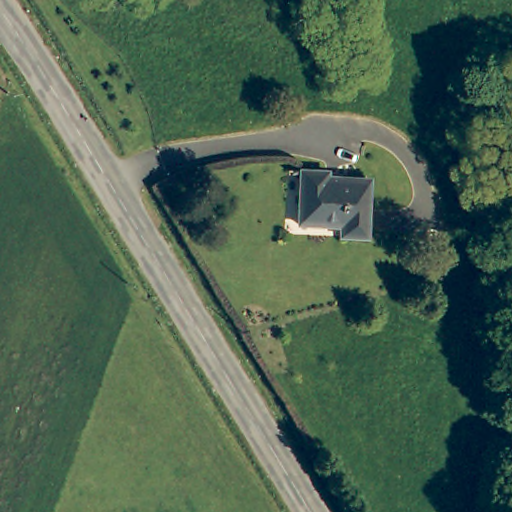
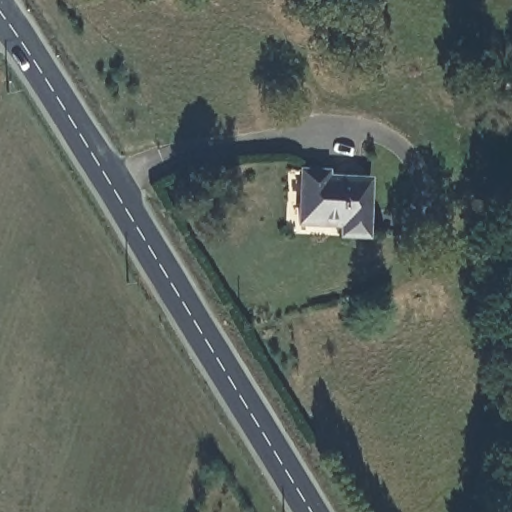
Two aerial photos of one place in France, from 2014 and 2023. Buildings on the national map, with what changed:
unchanged [(327,174),(327,179),(368,181),(364,239),(337,236),(338,227),(297,224),(302,171),(327,174)]

